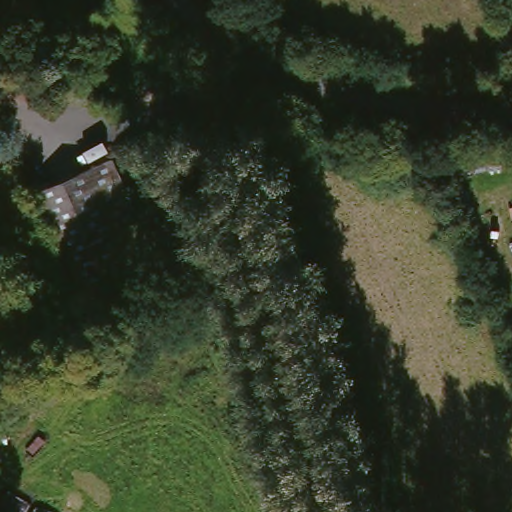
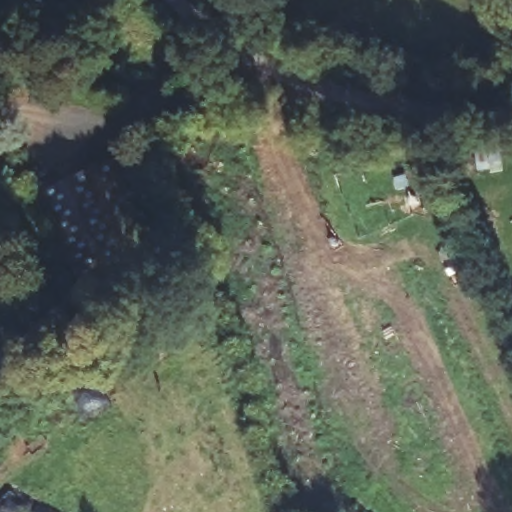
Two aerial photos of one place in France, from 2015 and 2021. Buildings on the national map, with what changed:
unchanged [(37,190),(111,156),(128,191),(162,266),(89,300),(37,190)]

